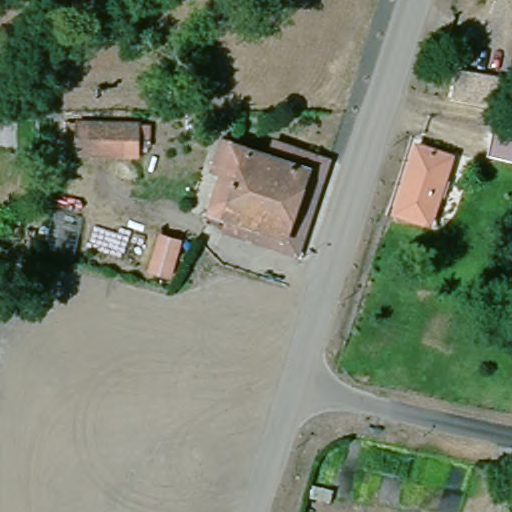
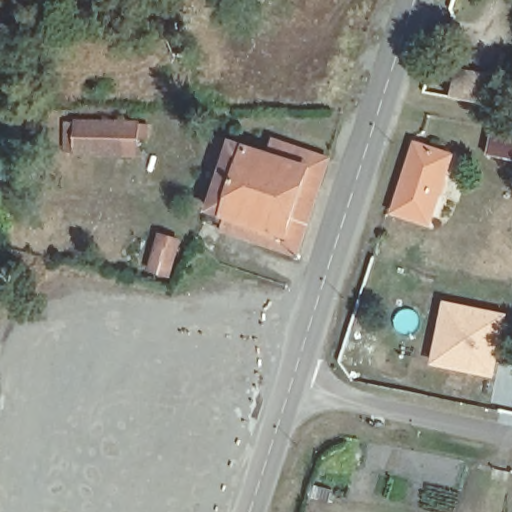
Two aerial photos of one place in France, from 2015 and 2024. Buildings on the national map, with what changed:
unchanged [(500,108),(487,106),(441,91),(450,65),(495,79),(507,82),(500,108)]
unchanged [(72,120),(125,118),(125,158),(74,155),(72,120)]
unchanged [(512,131),(512,153),(487,149),(491,128),(512,131)]
unchanged [(222,233),(228,218),(212,212),(225,179),(214,174),(226,143),(252,151),(255,138),(330,163),(298,258),(222,233)]
unchanged [(395,215),(420,143),(452,154),(430,227),(395,215)]
new [(444,300),(508,314),(499,361),(495,378),(431,364),(444,300)]
new [(499,361),(512,364),(512,407),(490,402),(495,378),(499,361)]

